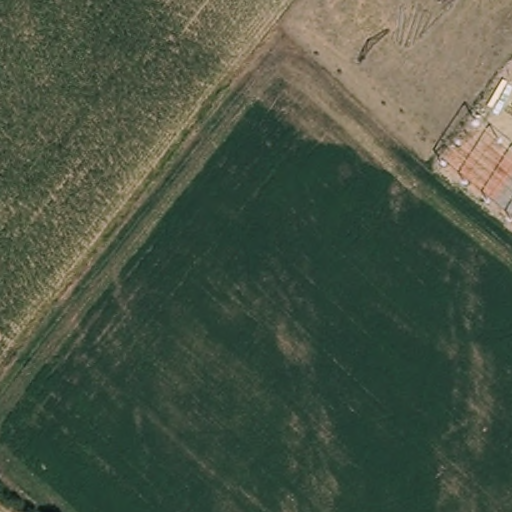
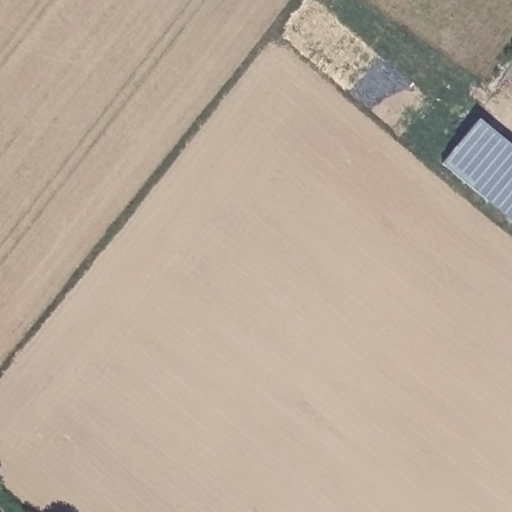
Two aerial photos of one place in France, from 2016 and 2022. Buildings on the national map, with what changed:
new [(477,120),(512,149),(512,225),(440,165),(477,120)]

